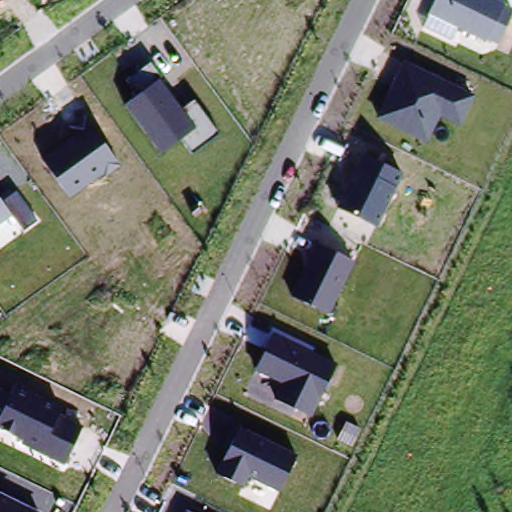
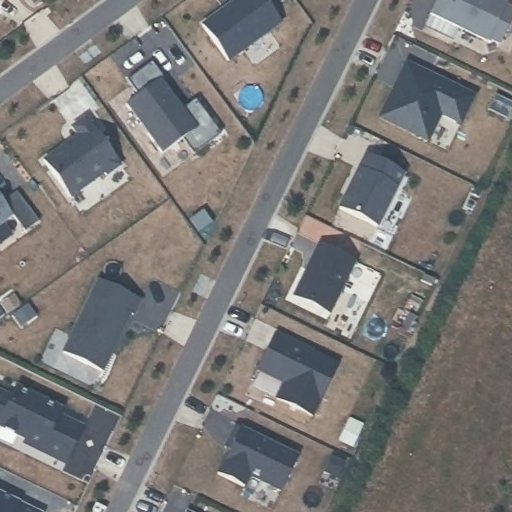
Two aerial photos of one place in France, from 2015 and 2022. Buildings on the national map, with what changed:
new [(237,0),(263,0),(280,23),(227,61),(202,26),(237,0)]
unchanged [(488,40),(487,42),(457,29),(452,41),(422,28),(436,0),(504,0),(507,1),(506,5),(512,7),(512,19),(500,44),(488,40)]
unchanged [(459,127),(440,119),(427,144),(374,120),(402,60),(475,94),(459,127)]
unchanged [(137,96),(125,80),(152,62),(182,106),(194,99),(219,131),(193,152),(182,137),(160,153),(122,106),(137,96)]
unchanged [(72,133),(68,127),(86,115),(121,164),(69,199),(41,159),(72,133)]
unchanged [(377,227),(337,207),(364,155),(404,173),(377,227)]
unchanged [(3,200),(17,190),(39,221),(25,230),(12,216),(0,226),(0,196),(3,200)]
unchanged [(330,317),(289,298),(317,243),(357,261),(330,317)]
new [(98,281),(140,301),(132,317),(128,315),(100,373),(62,355),(98,281)]
unchanged [(312,418),(274,399),(282,384),(255,371),(275,332),(337,363),(312,418)]
unchanged [(21,445),(22,439),(0,428),(0,385),(10,390),(14,383),(65,407),(61,415),(85,426),(66,466),(21,445)]
unchanged [(279,492),(251,478),(244,489),(213,474),(237,424),(297,453),(279,492)]
unchanged [(0,512),(0,491),(44,511),(43,512),(0,512)]
unchanged [(187,512),(183,512),(184,510),(187,512)]

